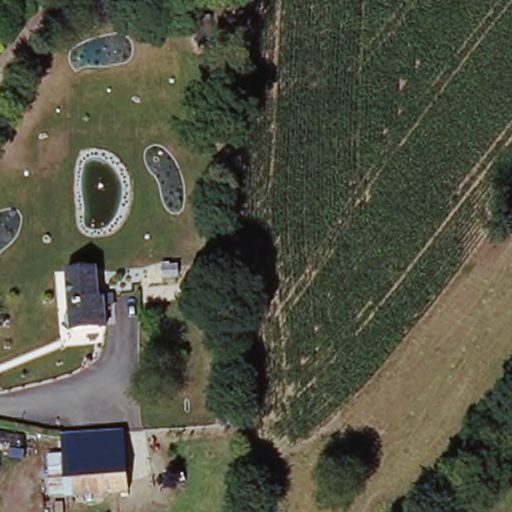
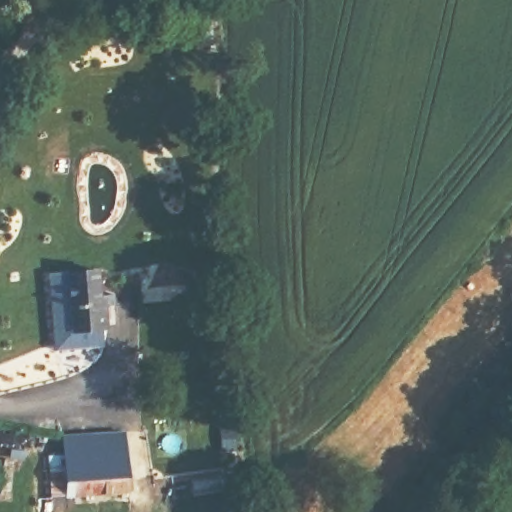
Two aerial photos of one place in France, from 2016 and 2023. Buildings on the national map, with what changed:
unchanged [(98,274),(100,301),(111,303),(112,330),(71,330),(70,274),(98,274)]
unchanged [(136,436),(136,468),(75,469),(73,438),(136,436)]
unchanged [(136,468),(136,494),(77,497),(75,469),(136,468)]

